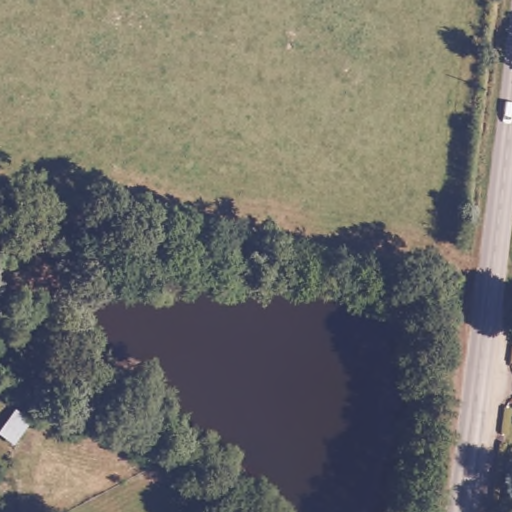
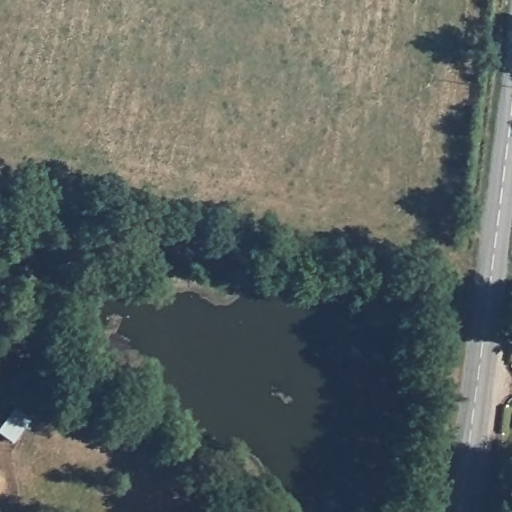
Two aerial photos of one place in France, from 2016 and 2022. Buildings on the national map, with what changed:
unchanged [(15,444),(0,431),(0,429),(19,406),(35,417),(15,444)]

